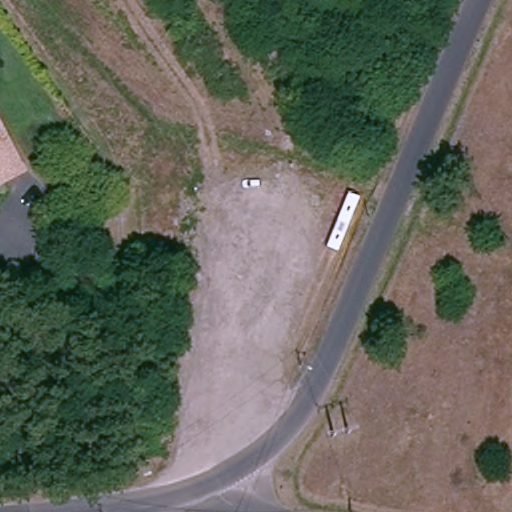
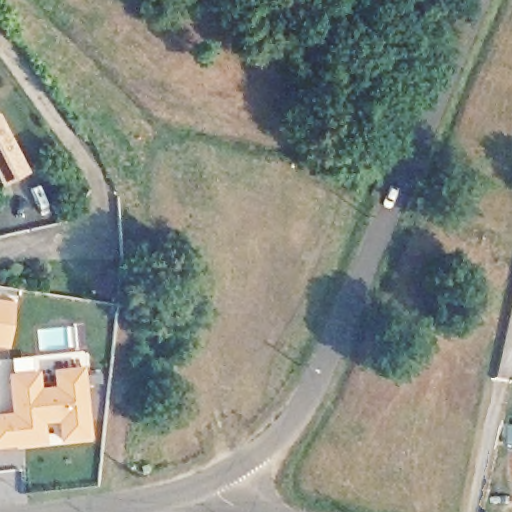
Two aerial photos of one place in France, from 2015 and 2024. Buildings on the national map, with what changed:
unchanged [(5,132),(24,170),(2,181),(0,177),(0,121),(5,132)]
new [(0,348),(0,300),(15,302),(8,349),(0,348)]
new [(0,448),(0,413),(10,412),(7,373),(38,370),(40,387),(53,385),(52,369),(84,367),(91,439),(58,443),(57,422),(44,423),(46,444),(0,448)]
unchanged [(150,467),(150,476),(140,475),(142,465),(150,467)]
demolished [(127,472),(127,481),(117,481),(119,471),(127,472)]

